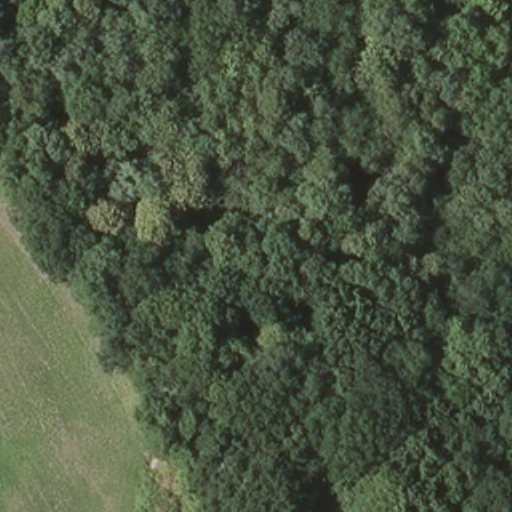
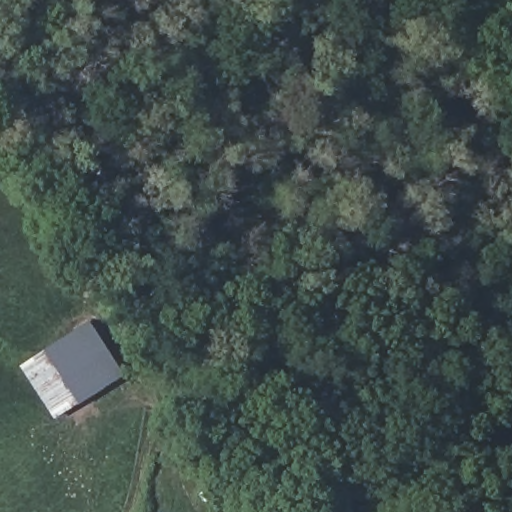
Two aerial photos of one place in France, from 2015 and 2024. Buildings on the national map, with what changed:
new [(86,319),(120,373),(53,418),(19,365),(86,319)]

